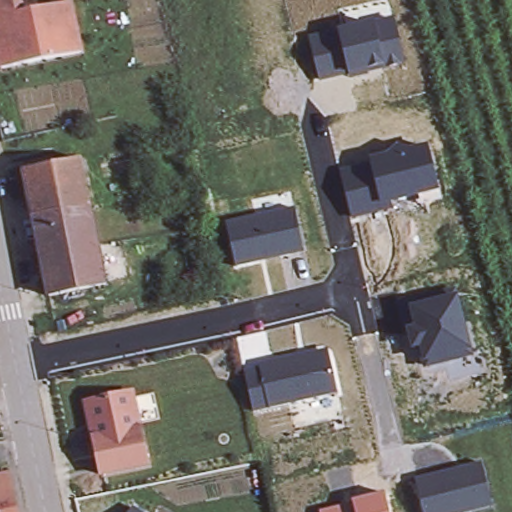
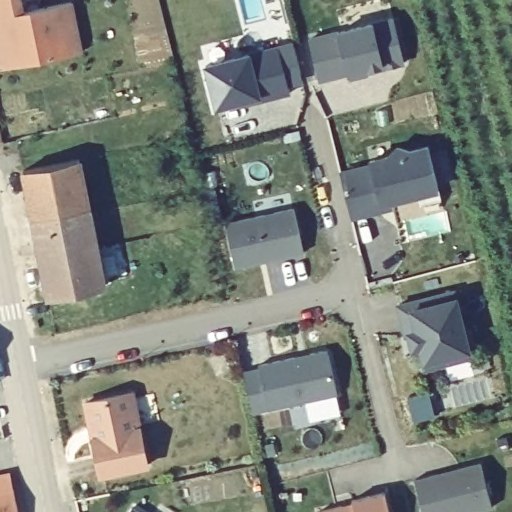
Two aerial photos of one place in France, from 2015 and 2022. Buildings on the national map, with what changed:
unchanged [(20,11),(69,0),(79,51),(20,63),(0,67),(0,0),(18,0),(20,11)]
unchanged [(317,81),(308,39),(340,33),(340,27),(394,18),(404,64),(317,81)]
new [(204,63),(250,52),(279,44),(290,93),(262,99),(215,109),(204,63)]
unchanged [(394,202),(395,213),(353,220),(344,172),(367,167),(365,159),(404,149),(405,153),(428,146),(438,190),(394,202)]
unchanged [(26,168),(82,158),(97,232),(40,243),(26,168)]
unchanged [(235,266),(225,222),(292,207),(302,250),(235,266)]
unchanged [(40,243),(97,232),(107,285),(50,296),(40,243)]
unchanged [(422,369),(418,348),(411,351),(406,328),(414,325),(410,306),(460,296),(473,356),(422,369)]
unchanged [(269,410),(255,413),(245,369),(258,366),(327,353),(337,394),(269,410)]
unchanged [(93,424),(88,400),(135,391),(149,464),(102,473),(95,436),(93,424)]
unchanged [(426,512),(417,479),(482,463),(491,506),(467,512),(426,512)]
unchanged [(15,486),(20,512),(0,512),(0,473),(10,470),(15,486)]
unchanged [(351,498),(385,490),(390,512),(322,512),(352,504),(351,498)]
unchanged [(139,512),(124,512),(130,505),(139,512)]

